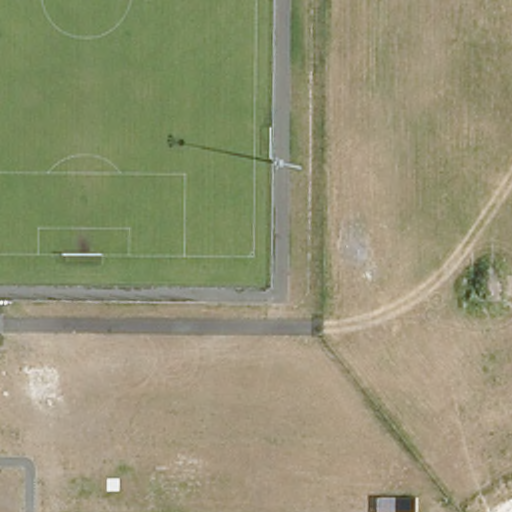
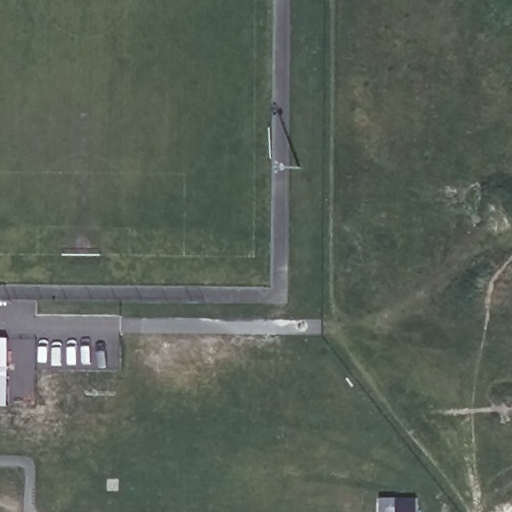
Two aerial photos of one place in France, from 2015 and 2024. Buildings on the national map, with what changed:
new [(7,338),(6,404),(0,404),(0,338),(7,338)]

